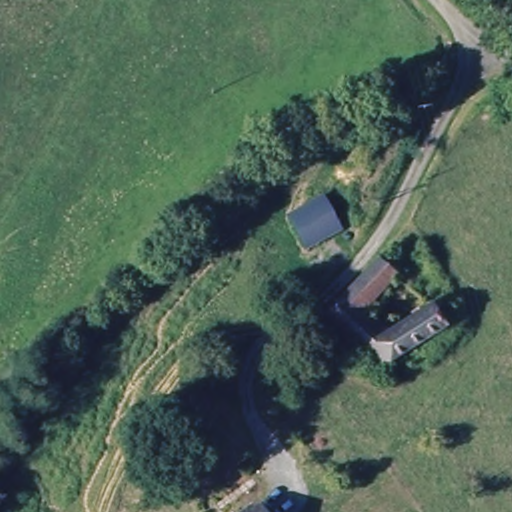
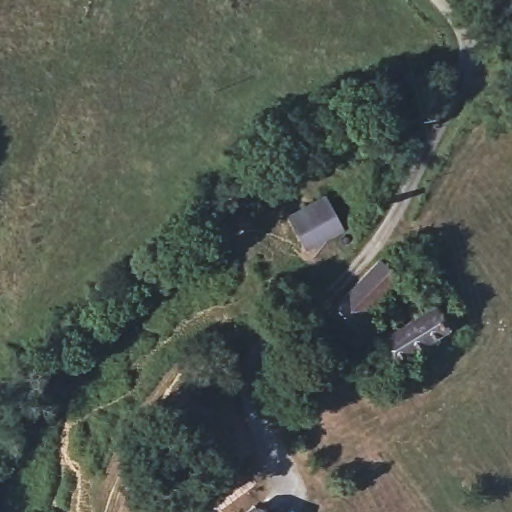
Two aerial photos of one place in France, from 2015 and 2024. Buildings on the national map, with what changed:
unchanged [(317,196),(341,225),(310,250),(287,220),(317,196)]
unchanged [(376,267),(396,281),(367,311),(378,324),(387,317),(399,331),(439,303),(457,324),(398,363),(381,375),(333,328),(327,322),(325,320),(376,267)]
unchanged [(255,512),(236,512),(248,503),(255,512)]

